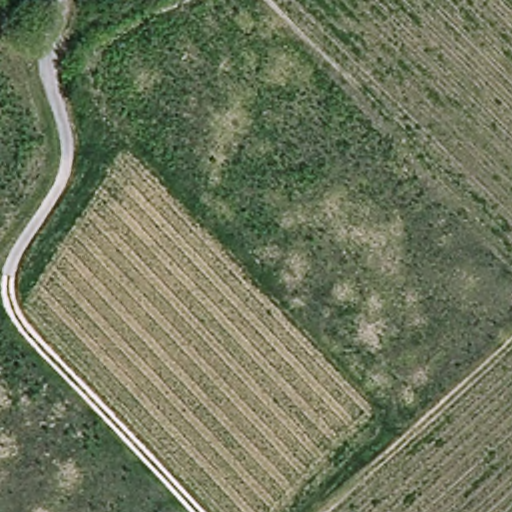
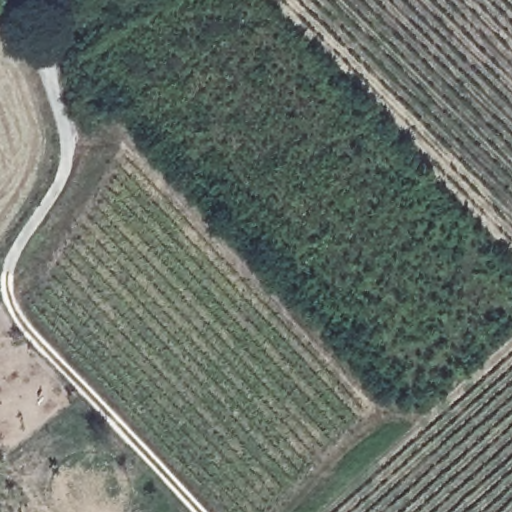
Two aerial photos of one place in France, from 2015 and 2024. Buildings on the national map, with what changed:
[]

